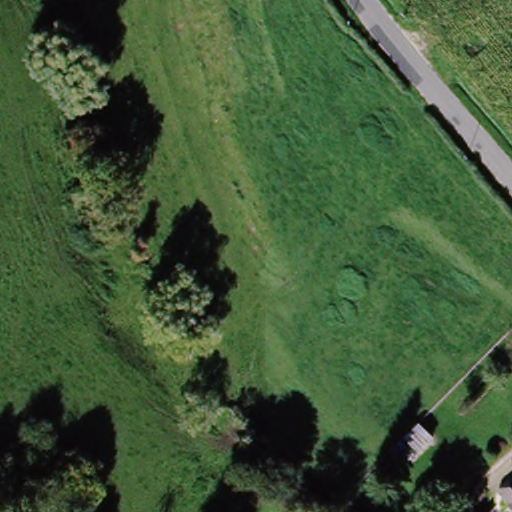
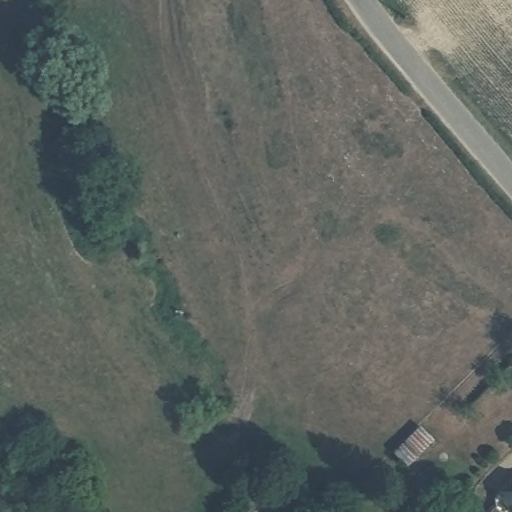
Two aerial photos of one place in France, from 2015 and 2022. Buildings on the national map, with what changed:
unchanged [(512,482),(512,505),(500,492),(512,482)]

